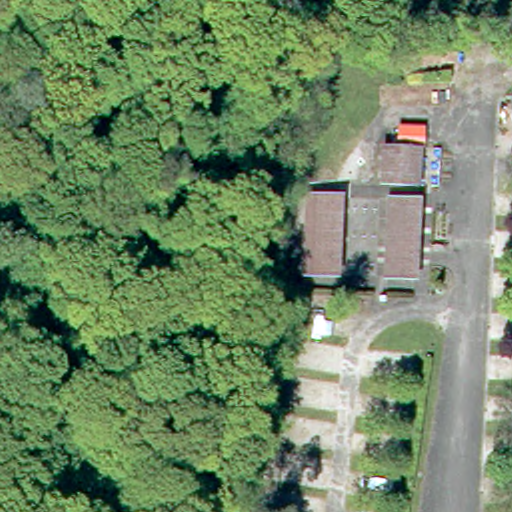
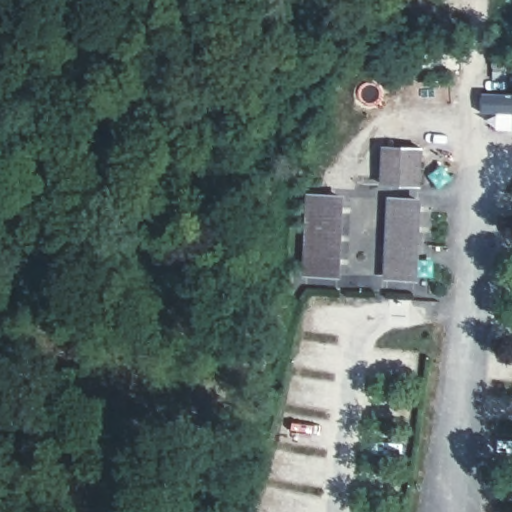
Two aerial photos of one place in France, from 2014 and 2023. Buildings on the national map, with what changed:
unchanged [(422,146),(420,185),(384,183),(386,145),(422,146)]
unchanged [(300,272),(300,190),(341,192),(342,273),(300,272)]
unchanged [(421,200),(417,277),(389,276),(393,199),(421,200)]

